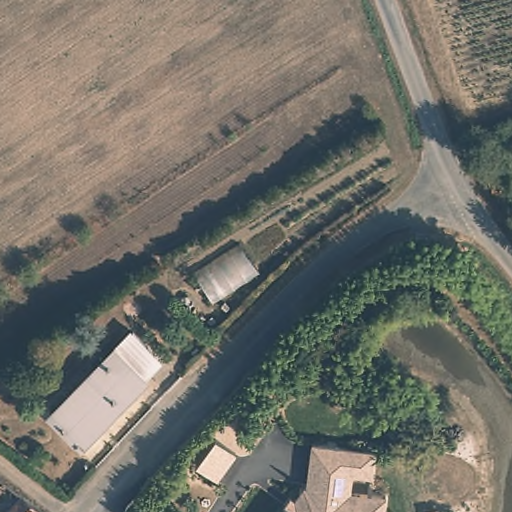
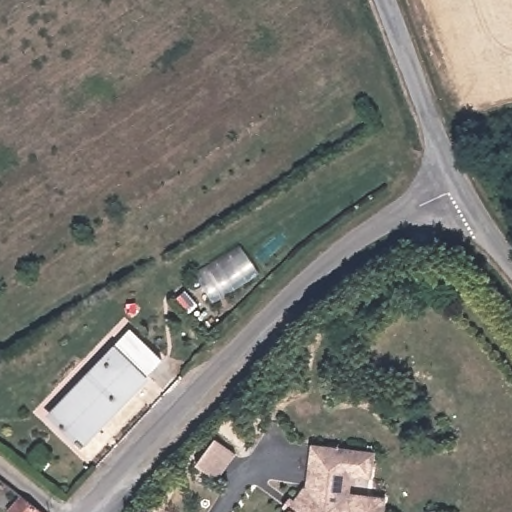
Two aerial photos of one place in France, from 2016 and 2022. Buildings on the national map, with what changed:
unchanged [(122,336),(129,342),(152,364),(135,382),(106,355),(105,354),(122,336)]
unchanged [(106,355),(135,382),(136,383),(71,451),(40,421),(101,358),(105,354),(106,355)]
unchanged [(378,450),(376,478),(355,477),(355,479),(353,491),(388,497),(387,512),(290,512),(293,508),(306,488),(312,441),(378,450)]
unchanged [(22,496),(43,512),(9,512),(22,496)]

